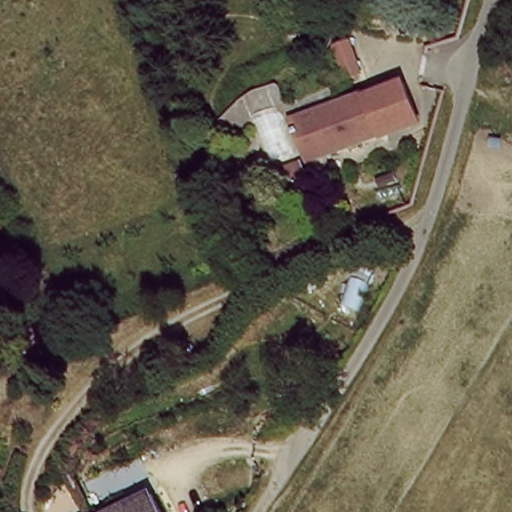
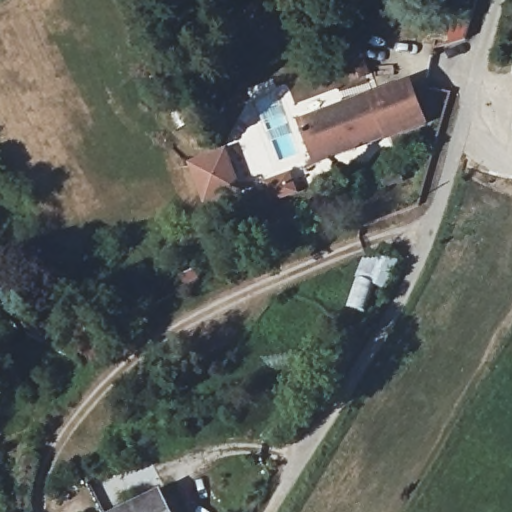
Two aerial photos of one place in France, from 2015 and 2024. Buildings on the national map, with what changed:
unchanged [(377,95),(378,98),(415,84),(432,128),(395,141),(395,140),(321,167),(304,123),(377,95)]
new [(228,151),(244,193),(206,208),(190,165),(228,151)]
unchanged [(171,512),(139,512),(165,499),(171,512)]

